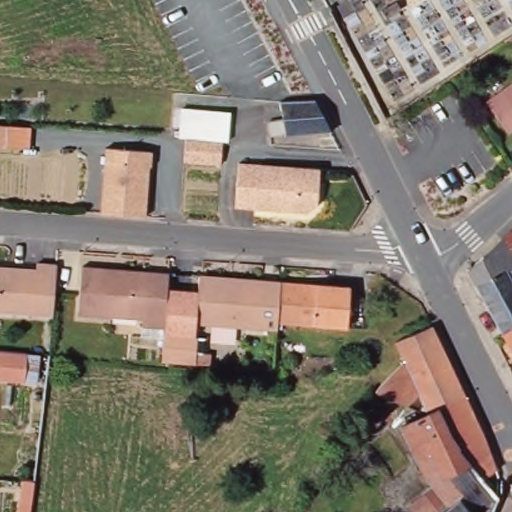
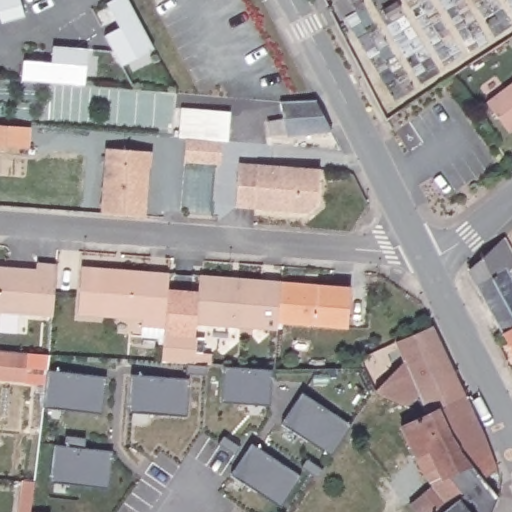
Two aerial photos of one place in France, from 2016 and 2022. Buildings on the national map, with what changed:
new [(1,23),(0,19),(0,0),(20,0),(24,16),(1,23)]
new [(106,2),(111,0),(128,0),(153,49),(120,66),(104,35),(119,27),(106,2)]
new [(23,60),(51,63),(52,46),(87,49),(84,85),(21,80),(23,60)]
unchanged [(512,83),(512,129),(508,132),(486,102),(512,83)]
unchanged [(266,115),(281,115),(280,98),(316,95),(332,126),(282,130),(282,129),(267,130),(266,115)]
unchanged [(181,110),(230,113),(227,139),(179,136),(181,110)]
unchanged [(29,149),(0,146),(0,125),(31,127),(29,149)]
new [(187,139),(223,141),(221,163),(185,160),(187,139)]
unchanged [(110,142),(156,146),(155,161),(153,161),(149,211),(105,207),(110,142)]
unchanged [(239,160),(320,166),(318,202),(308,213),(236,205),(239,160)]
unchanged [(512,230),(512,328),(505,331),(502,333),(476,284),(477,283),(468,270),(503,237),(512,230)]
unchanged [(41,258),(60,260),(57,311),(0,307),(0,262),(40,265),(41,258)]
unchanged [(85,261),(108,263),(107,270),(127,271),(127,265),(172,268),(168,330),(168,333),(145,332),(146,314),(82,309),(85,261)]
unchanged [(203,271),(264,276),(265,270),(285,272),(281,313),(281,320),(200,314),(203,271)]
unchanged [(285,272),(355,277),(351,318),(281,313),(285,272)]
unchanged [(359,414),(377,387),(375,385),(403,356),(395,336),(431,321),(465,391),(439,403),(428,408),(418,389),(404,399),(395,395),(373,425),(359,414)]
unchanged [(502,333),(505,331),(512,328),(512,352),(502,333)]
unchanged [(168,333),(168,330),(209,332),(208,347),(215,348),(214,360),(199,360),(166,357),(168,333)]
unchanged [(24,382),(0,380),(0,351),(27,353),(39,355),(36,383),(24,382)]
new [(223,366),(272,370),(269,405),(221,402),(223,366)]
new [(130,375),(189,379),(187,416),(127,412),(130,375)]
unchanged [(428,408),(439,403),(465,391),(484,432),(496,465),(484,475),(497,491),(490,512),(419,512),(409,500),(408,499),(431,480),(423,470),(414,449),(401,420),(426,409),(428,408)]
new [(301,392),(351,425),(331,456),(281,424),(301,392)]
new [(251,444),(301,476),(280,507),(230,475),(251,444)]
new [(54,445),(112,451),(108,489),(49,482),(54,445)]
unchanged [(23,482),(35,483),(32,503),(31,512),(19,512),(23,482)]

